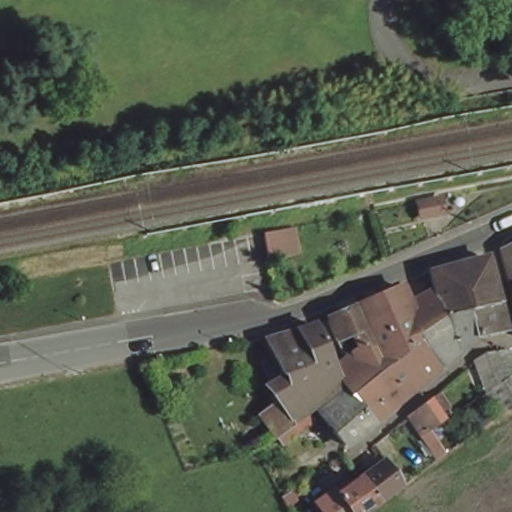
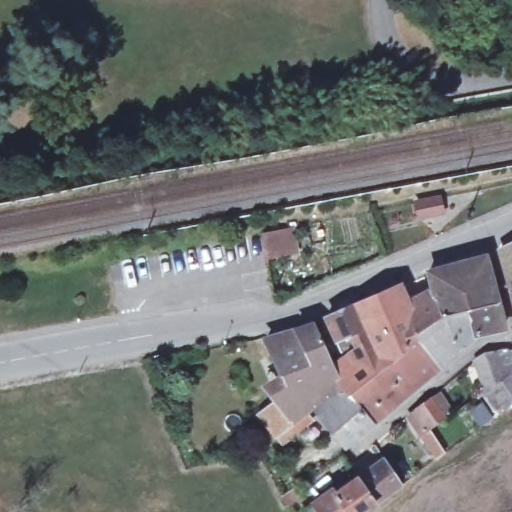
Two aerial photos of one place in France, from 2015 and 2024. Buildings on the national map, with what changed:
unchanged [(412,206),(443,198),(447,211),(416,222),(412,206)]
unchanged [(289,251),(274,254),(271,238),(270,232),(284,229),(289,251)]
unchanged [(512,244),(512,300),(498,251),(512,244)]
unchanged [(433,275),(489,258),(495,279),(439,294),(433,275)]
unchanged [(364,348),(357,333),(339,341),(329,319),(359,306),(403,288),(412,306),(439,294),(495,279),(502,305),(512,335),(512,337),(480,337),(461,354),(444,367),(404,398),(395,406),(384,415),(370,425),(346,445),(327,422),(353,401),(346,389),(333,363),(364,348)]
unchanged [(260,415),(279,400),(276,396),(292,387),(271,341),(315,325),(333,363),(346,389),(300,427),(283,440),(260,415)]
unchanged [(511,362),(484,381),(471,359),(476,354),(508,345),(511,362)]
unchanged [(512,391),(501,400),(491,385),(506,373),(512,381),(512,391)]
unchanged [(450,416),(433,428),(422,437),(413,418),(423,410),(438,398),(450,416)]
unchanged [(325,504),(346,487),(368,469),(386,493),(363,509),(359,512),(305,512),(322,501),(325,504)]

